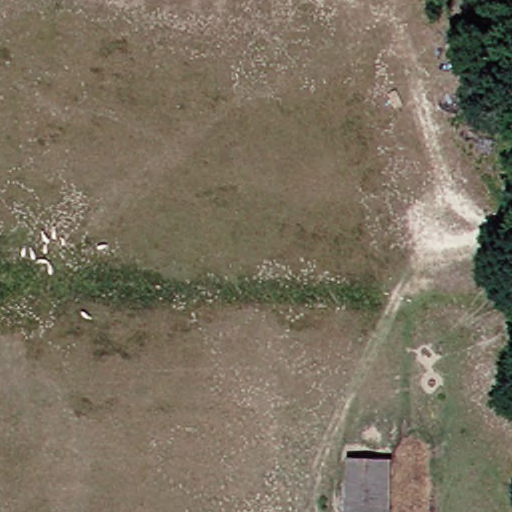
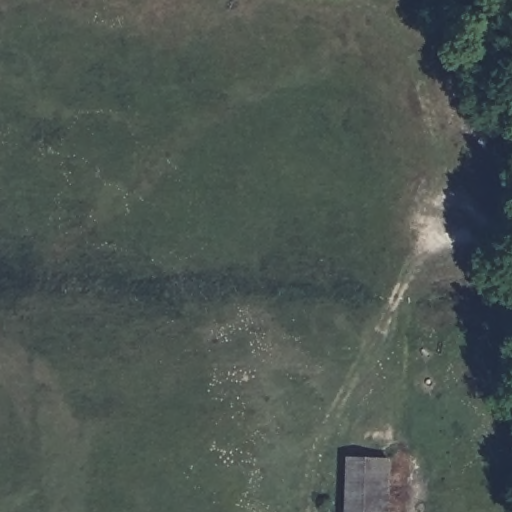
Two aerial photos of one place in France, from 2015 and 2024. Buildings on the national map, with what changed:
unchanged [(383,457),(381,512),(336,512),(338,456),(383,457)]

